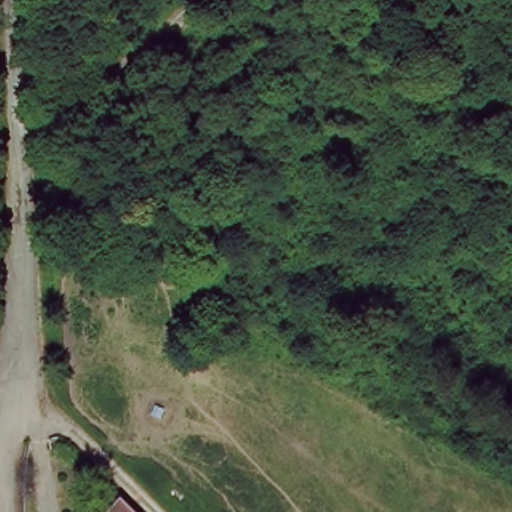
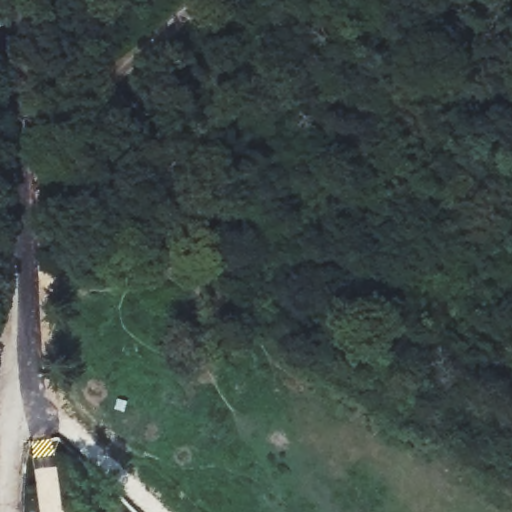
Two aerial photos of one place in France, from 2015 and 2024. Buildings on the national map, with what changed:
unchanged [(165,243),(184,259),(174,271),(157,255),(165,243)]
unchanged [(131,503),(140,512),(111,512),(126,498),(131,503)]

